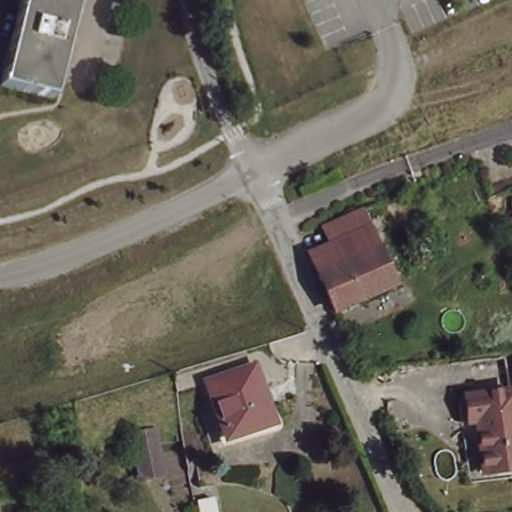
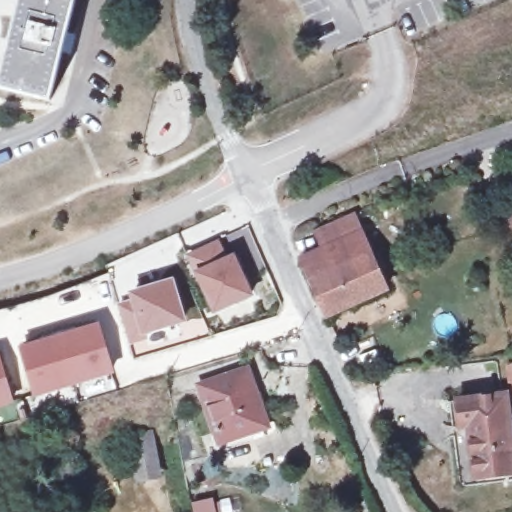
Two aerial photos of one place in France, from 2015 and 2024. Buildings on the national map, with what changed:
unchanged [(0,90),(0,78),(20,0),(74,0),(47,103),(0,90)]
unchanged [(310,282),(292,243),(353,215),(371,253),(310,282)]
new [(207,248),(215,265),(223,261),(240,300),(203,316),(180,260),(207,248)]
unchanged [(310,282),(371,253),(387,288),(328,317),(310,282)]
new [(143,299),(141,290),(171,281),(182,319),(143,330),(145,336),(127,341),(117,306),(143,299)]
new [(94,327),(108,376),(30,397),(17,349),(94,327)]
unchanged [(262,429),(218,444),(200,389),(245,374),(262,429)]
new [(0,407),(0,380),(7,405),(0,407)]
unchanged [(512,418),(512,474),(480,479),(473,440),(480,440),(479,426),(462,427),(459,400),(509,394),(512,418)]
unchanged [(160,475),(140,479),(131,437),(152,433),(160,475)]

